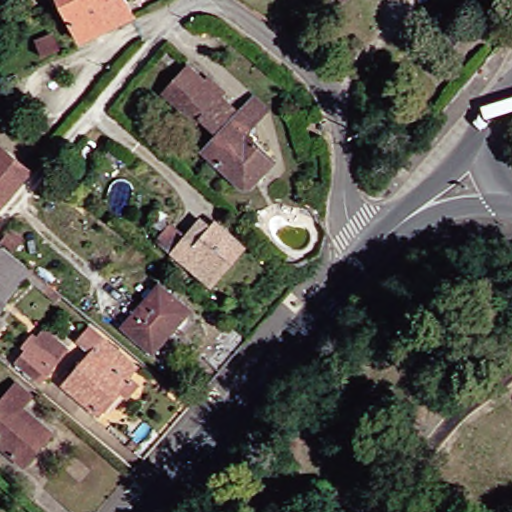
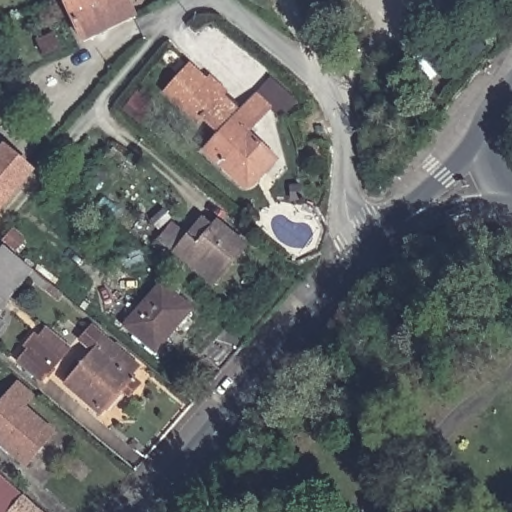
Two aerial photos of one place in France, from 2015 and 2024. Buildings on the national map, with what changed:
unchanged [(124,18),(68,44),(53,3),(40,8),(37,0),(117,0),(124,18)]
unchanged [(336,0),(341,0),(338,2),(336,0)]
unchanged [(189,120),(182,127),(150,97),(174,70),(187,81),(198,70),(214,86),(205,97),(214,105),(197,126),(189,120)]
unchanged [(225,103),(240,85),(255,99),(238,116),(252,130),(245,139),(271,162),(249,186),(235,186),(197,152),(210,137),(197,126),(214,105),(219,110),(225,103)]
unchanged [(329,126),(311,136),(302,119),(319,109),(329,126)]
unchanged [(1,147),(29,172),(0,205),(0,149),(1,147)]
unchanged [(165,249),(187,227),(196,236),(209,224),(233,247),(198,282),(165,249)]
unchanged [(26,271),(0,301),(0,249),(26,271)]
unchanged [(182,306),(143,347),(119,325),(156,280),(182,306)]
unchanged [(205,368),(170,332),(188,313),(222,348),(205,368)]
unchanged [(55,353),(36,375),(11,353),(30,331),(55,353)]
unchanged [(126,371),(116,381),(126,390),(116,401),(107,393),(89,413),(56,385),(82,356),(70,345),(82,332),(126,371)]
unchanged [(0,445),(0,397),(15,380),(28,393),(18,403),(43,427),(14,457),(0,445)]
new [(25,493),(25,494),(10,511),(11,512),(1,512),(0,511),(0,472),(25,493)]
new [(46,512),(11,512),(10,511),(25,494),(46,512)]

